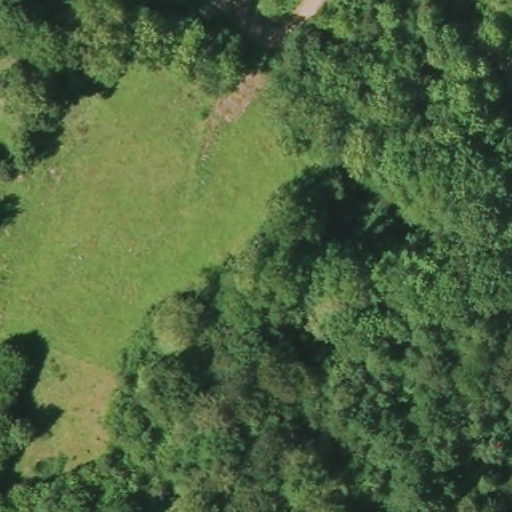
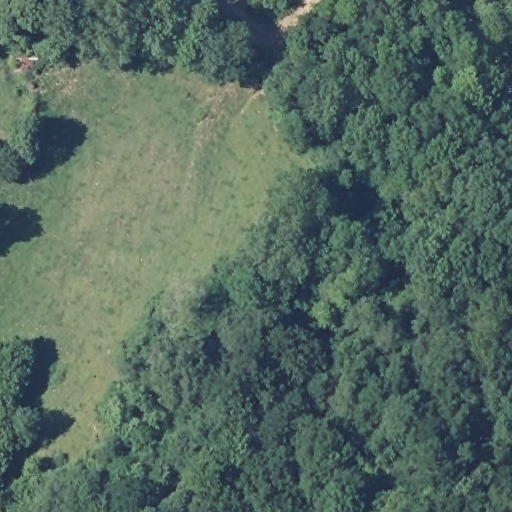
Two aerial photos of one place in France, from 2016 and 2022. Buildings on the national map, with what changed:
unchanged [(15,67),(14,53),(33,52),(33,66),(15,67)]

